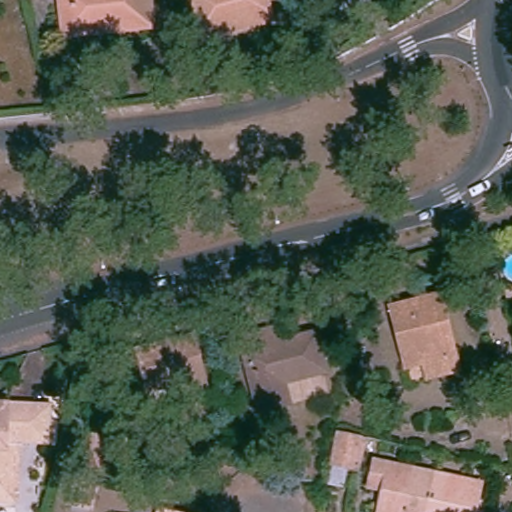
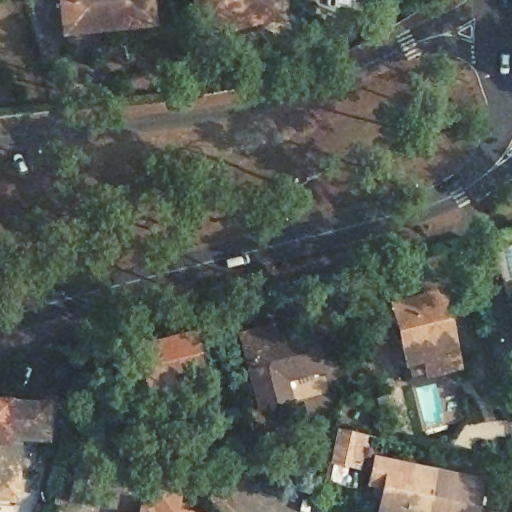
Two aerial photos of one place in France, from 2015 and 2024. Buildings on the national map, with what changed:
unchanged [(61,20),(60,0),(149,0),(151,20),(115,24),(62,29),(61,20)]
unchanged [(220,21),(198,27),(192,0),(260,0),(265,18),(229,27),(222,29),(220,21)]
unchanged [(428,387),(424,372),(399,379),(384,324),(426,313),(436,351),(444,349),(448,366),(452,380),(428,387)]
unchanged [(188,381),(184,366),(144,376),(134,339),(189,325),(197,353),(204,377),(188,381)]
unchanged [(287,381),(293,404),(268,410),(253,353),(249,338),(277,331),(280,345),(322,334),(331,370),(287,381)]
unchanged [(0,492),(0,401),(44,404),(42,436),(15,435),(13,493),(0,492)]
unchanged [(362,433),(354,464),(327,458),(333,427),(362,433)]
unchanged [(88,432),(100,435),(92,472),(90,471),(85,499),(67,496),(73,468),(79,469),(88,432)]
unchanged [(410,492),(394,489),(401,463),(416,467),(479,481),(472,512),(441,512),(407,505),(410,492)]

